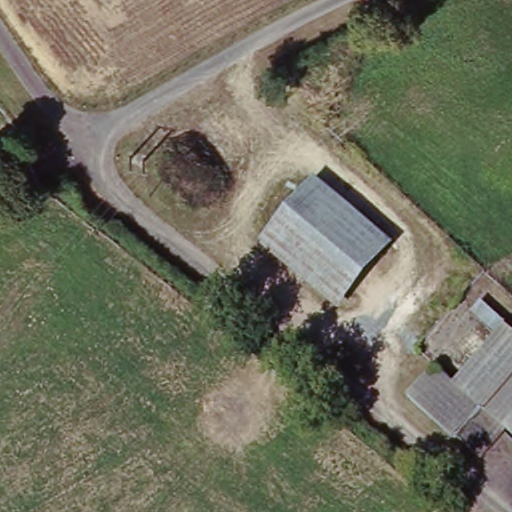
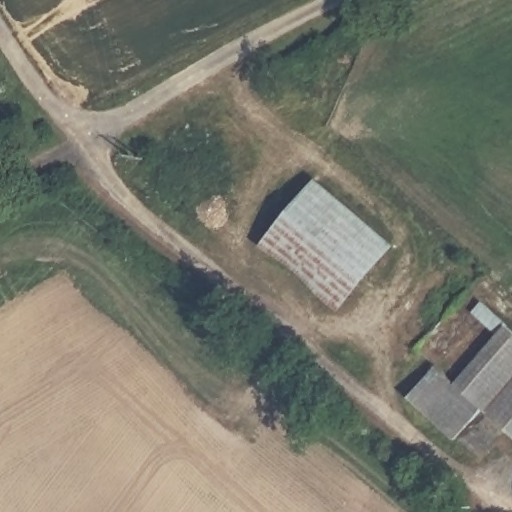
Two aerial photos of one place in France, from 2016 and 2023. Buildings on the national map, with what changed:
unchanged [(396,253),(341,320),(262,253),(317,187),(396,253)]
unchanged [(507,436),(483,462),(410,402),(437,373),(456,388),(498,337),(460,304),(470,294),(512,331),(512,439),(507,436)]

